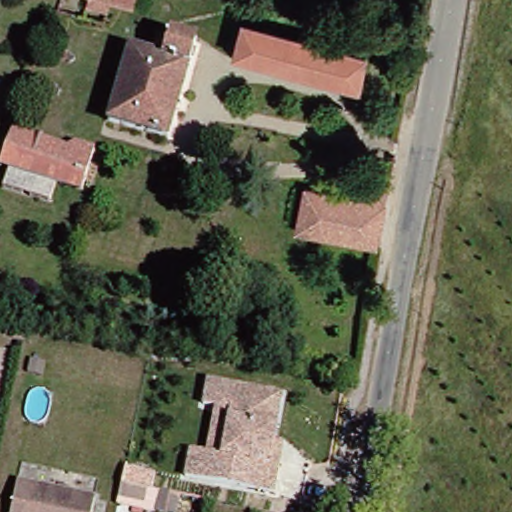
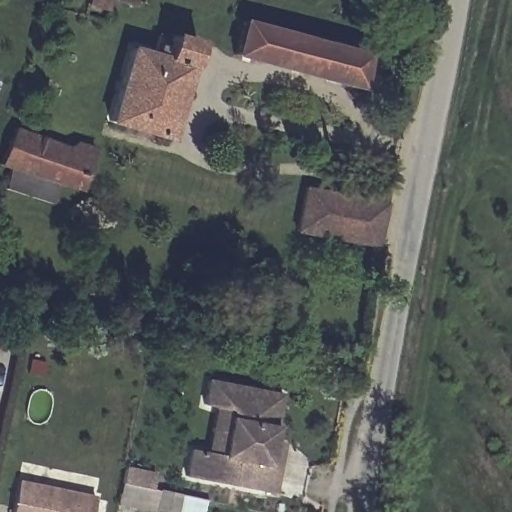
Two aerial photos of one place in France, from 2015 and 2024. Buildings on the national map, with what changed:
unchanged [(119,5),(98,0),(120,0),(119,5)]
unchanged [(360,52),(353,85),(228,56),(235,24),(360,52)]
unchanged [(126,51),(149,58),(152,47),(162,50),(166,38),(191,45),(162,141),(105,122),(126,51)]
unchanged [(6,171),(0,170),(0,162),(9,132),(64,148),(73,147),(90,152),(77,193),(52,186),(45,205),(2,193),(6,171)]
unchanged [(300,190),(352,200),(355,187),(383,193),(372,250),(292,232),(300,190)]
unchanged [(190,448),(221,454),(231,407),(204,402),(208,378),(282,393),(267,463),(278,465),(272,491),(185,474),(190,448)]
unchanged [(96,512),(16,512),(22,485),(98,500),(96,512)]
unchanged [(182,497),(179,512),(158,512),(162,493),(182,497)]

